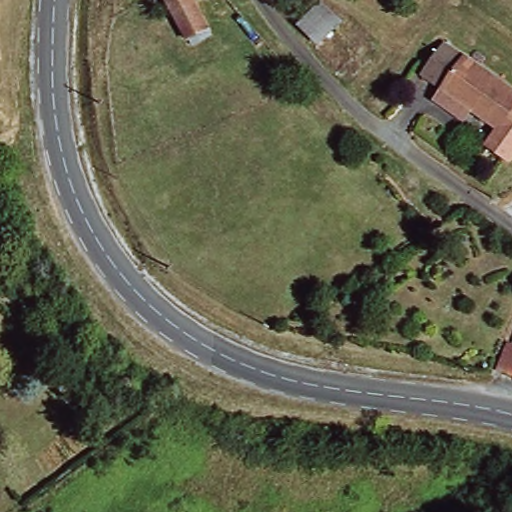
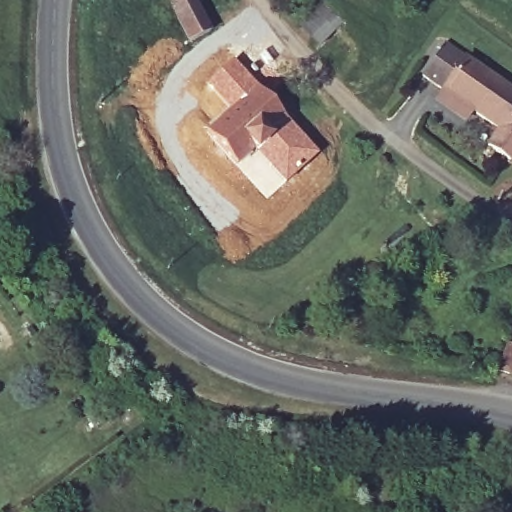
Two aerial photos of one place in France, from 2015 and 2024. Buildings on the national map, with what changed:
unchanged [(172,0),(200,0),(216,31),(192,42),(172,0)]
unchanged [(322,4),(345,25),(321,48),(299,27),(322,4)]
unchanged [(512,90),(512,158),(496,148),(507,130),(437,88),(457,57),(512,90)]
new [(238,167),(205,130),(227,110),(206,83),(234,58),(291,121),(319,153),(285,184),(267,199),(238,167)]
unchanged [(500,365),(512,340),(512,371),(500,365)]

